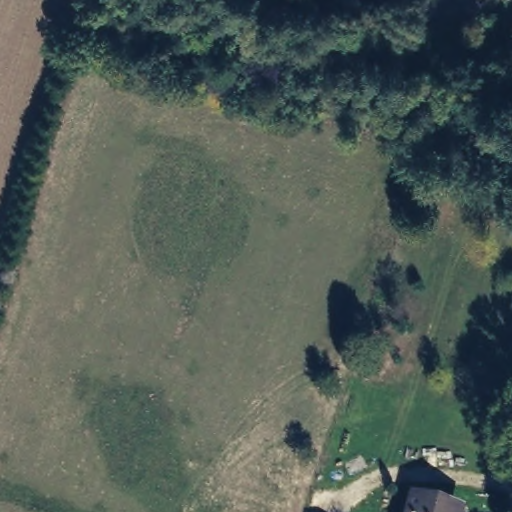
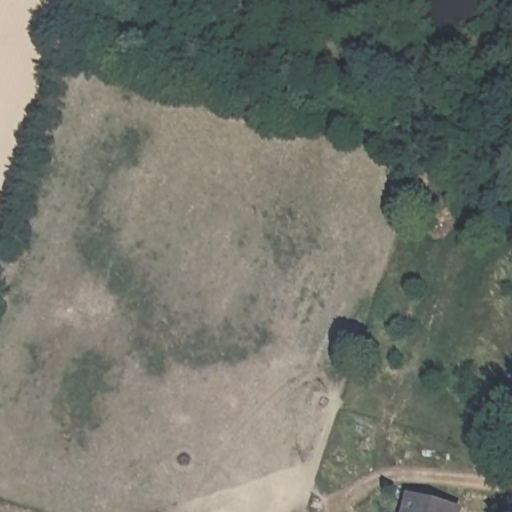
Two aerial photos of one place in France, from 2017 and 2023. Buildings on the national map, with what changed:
unchanged [(421,504),(449,512),(418,512),(421,504)]

